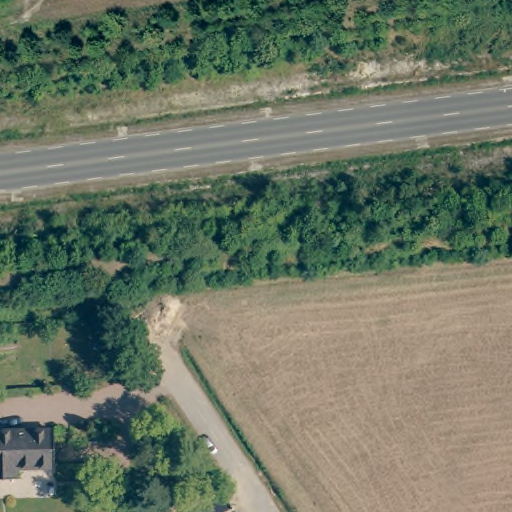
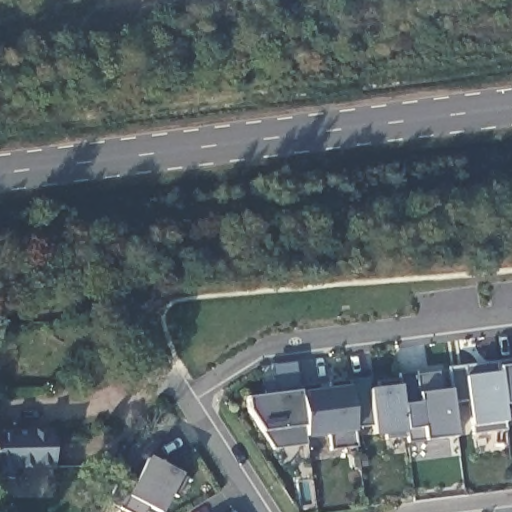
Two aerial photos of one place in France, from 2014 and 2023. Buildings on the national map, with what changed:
new [(263,391),(318,385),(318,390),(332,388),(331,383),(367,380),(369,390),(378,388),(377,383),(400,381),(399,375),(417,372),(417,377),(438,373),(441,392),(451,391),(448,369),(512,360),(512,411),(504,412),(505,422),(506,430),(474,434),(472,427),(469,402),(451,404),(456,437),(426,441),(408,442),(407,437),(386,439),(386,434),(374,436),(373,428),(354,432),(356,447),(331,450),(329,436),(306,438),(307,446),(274,450),(262,432),(249,410),(249,400),(264,396),(263,391)]
unchanged [(51,435),(51,469),(13,469),(12,482),(0,481),(0,434),(51,435)]
new [(118,476),(134,483),(149,457),(181,474),(187,477),(177,496),(172,493),(161,512),(158,512),(147,507),(144,512),(129,512),(108,500),(118,476)]

